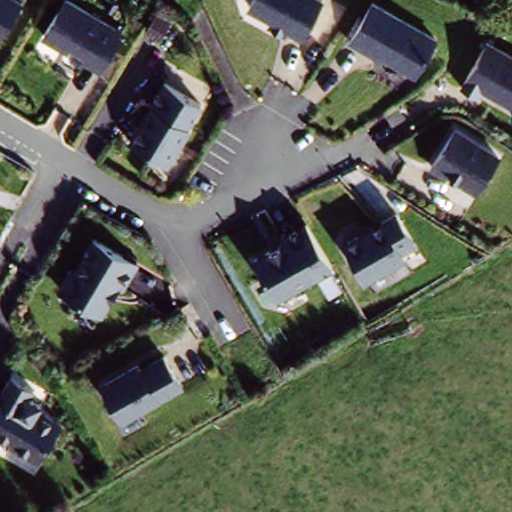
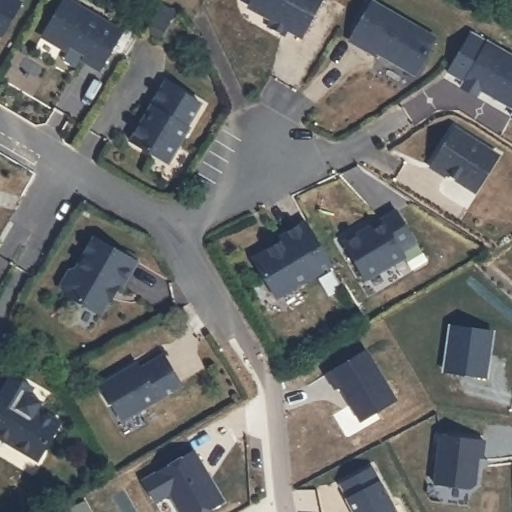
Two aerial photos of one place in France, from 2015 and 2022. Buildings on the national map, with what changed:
unchanged [(0,0),(36,0),(13,36),(0,28),(0,0)]
unchanged [(133,33),(109,72),(92,61),(95,56),(78,48),(64,44),(55,32),(75,0),(80,0),(133,33)]
unchanged [(282,23),(260,12),(266,0),(334,0),(335,1),(313,43),(298,35),(296,39),(279,30),(282,23)]
unchanged [(431,73),(424,76),(387,56),(387,58),(360,44),(382,5),(448,43),(431,73)]
unchanged [(512,52),(512,105),(488,90),(483,96),(470,85),(500,43),(512,52)]
unchanged [(197,132),(178,166),(138,144),(171,86),(208,107),(196,128),(197,132)]
unchanged [(436,167),(462,130),(505,158),(481,193),(453,173),(451,177),(436,167)]
unchanged [(385,221),(402,212),(422,247),(407,255),(410,261),(370,284),(351,250),(352,241),(361,235),(376,226),(380,233),(387,228),(385,221)]
unchanged [(280,300),(256,261),(285,243),(282,239),(310,222),(337,265),(280,300)]
unchanged [(117,289),(100,321),(60,300),(57,293),(66,280),(73,276),(87,245),(134,267),(122,292),(117,289)]
new [(495,333),(488,378),(447,372),(453,327),(495,333)]
new [(363,351),(393,401),(357,422),(336,387),(332,390),(323,375),(363,351)]
unchanged [(137,364),(141,369),(163,353),(184,382),(150,409),(128,424),(106,394),(106,389),(110,386),(137,364)]
unchanged [(0,442),(0,402),(12,380),(33,391),(30,398),(43,406),(40,412),(63,423),(43,463),(0,442)]
new [(483,441),(482,458),(478,457),(477,485),(472,489),(437,486),(440,438),(483,441)]
new [(223,504),(210,512),(179,512),(170,496),(155,504),(143,482),(195,453),(203,468),(200,469),(204,476),(207,474),(223,504)]
new [(381,482),(397,512),(352,512),(346,501),(348,500),(341,487),(372,471),(379,483),(381,482)]

